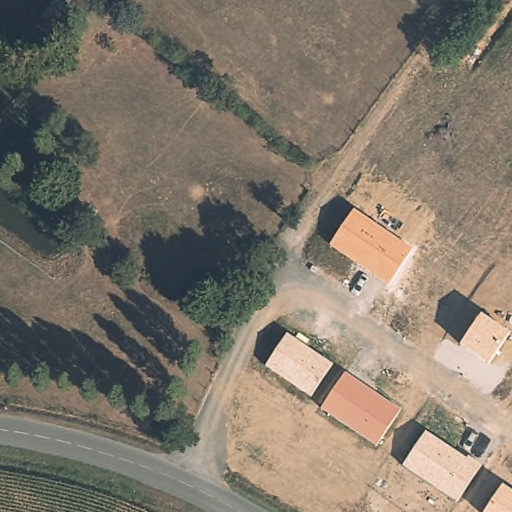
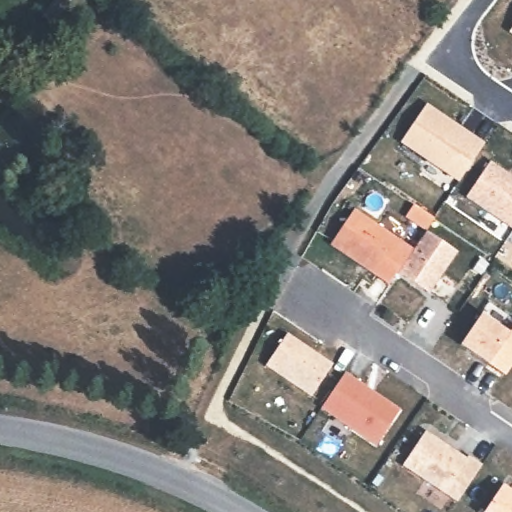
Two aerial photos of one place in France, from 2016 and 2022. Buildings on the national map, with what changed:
new [(512,27),(512,37),(507,34),(512,27)]
new [(426,104),(485,143),(458,183),(400,144),(426,104)]
new [(491,161),(512,175),(512,230),(465,198),(491,161)]
unchanged [(355,208),(414,248),(425,231),(457,253),(427,293),(396,273),(385,285),(328,247),(355,208)]
unchanged [(480,313),(509,333),(486,365),(458,346),(480,313)]
unchanged [(287,333),(333,363),(307,396),(264,366),(287,333)]
unchanged [(320,409),(345,373),(400,409),(375,446),(320,409)]
unchanged [(467,457),(470,454),(482,463),(455,503),(402,466),(425,431),(467,457)]
unchanged [(512,491),(512,512),(483,512),(502,484),(512,491)]

